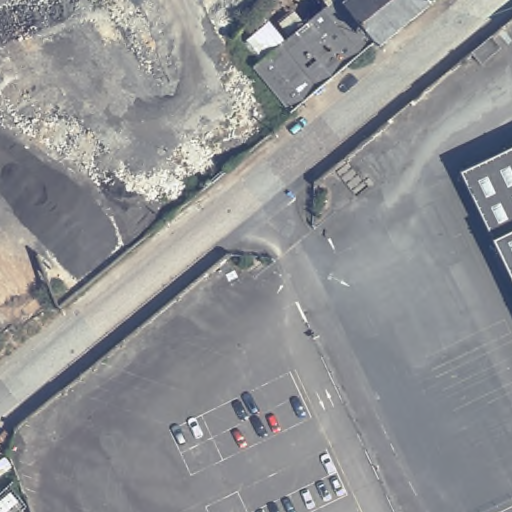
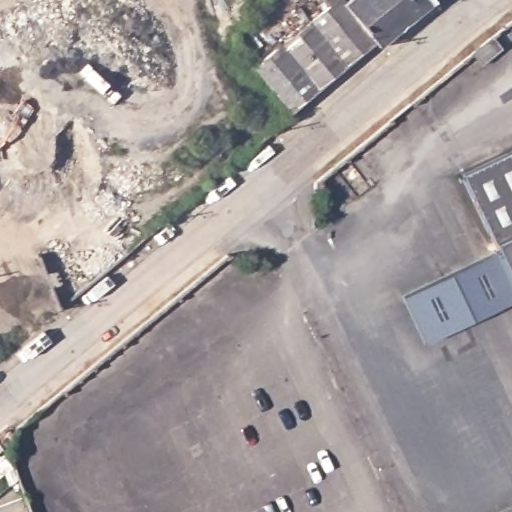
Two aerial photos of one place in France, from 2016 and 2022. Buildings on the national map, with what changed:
unchanged [(294,116),(256,70),(330,10),(322,0),(352,0),(346,5),(378,47),(294,116)]
unchanged [(440,5),(383,52),(378,47),(346,5),(352,0),(435,0),(440,5)]
demolished [(485,64),(474,50),(497,32),(507,46),(485,64)]
unchanged [(512,149),(512,274),(463,172),(512,149)]
new [(512,274),(512,302),(424,344),(400,295),(499,247),(512,274)]

